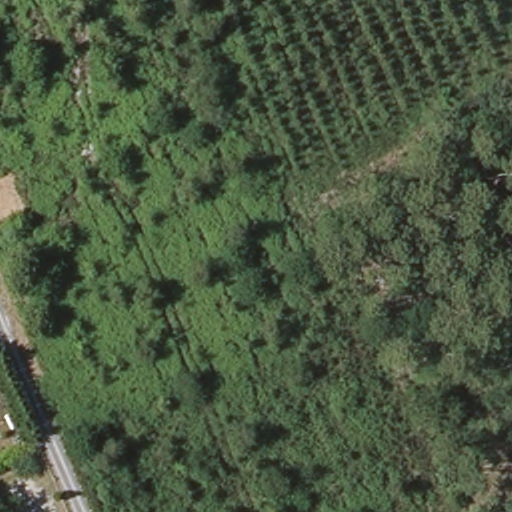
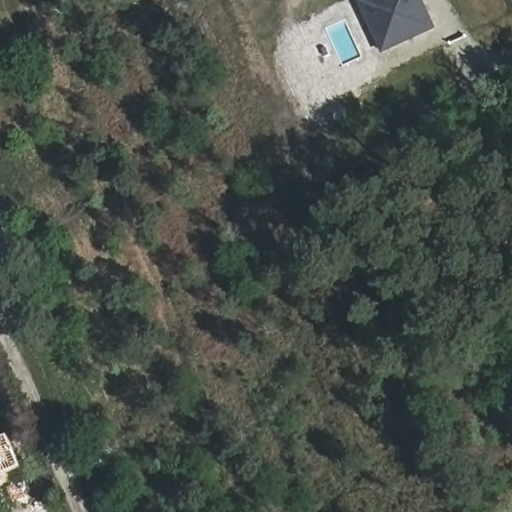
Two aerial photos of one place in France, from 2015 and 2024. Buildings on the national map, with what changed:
new [(358,0),(423,0),(436,29),(383,54),(358,0)]
new [(7,434),(22,466),(0,476),(0,438),(7,434)]

